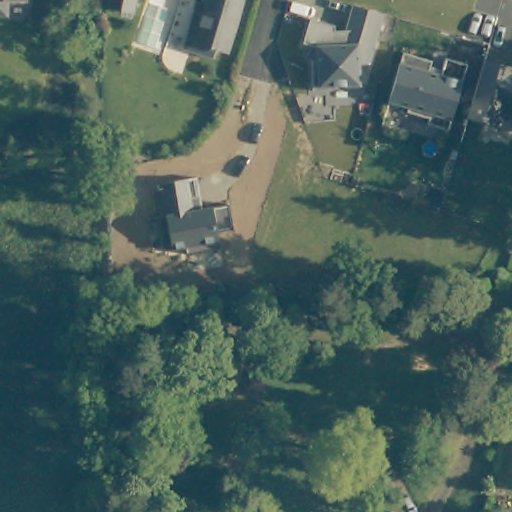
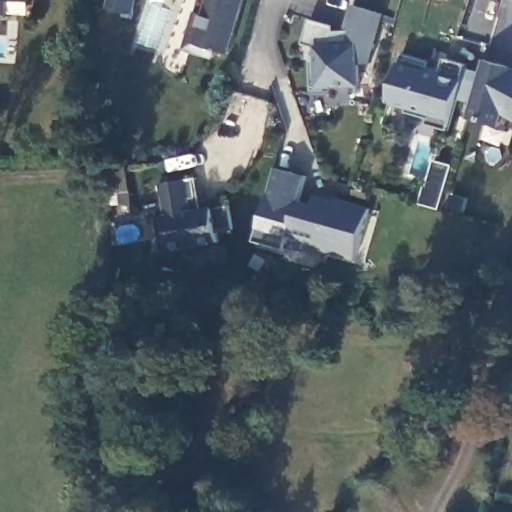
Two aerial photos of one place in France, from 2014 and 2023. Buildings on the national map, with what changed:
unchanged [(6,12),(0,12),(0,0),(6,0),(6,12)]
unchanged [(133,17),(107,10),(110,0),(137,0),(133,17)]
unchanged [(230,57),(220,54),(215,62),(185,52),(196,16),(206,20),(213,0),(247,0),(230,57)]
unchanged [(310,60),(314,60),(315,48),(302,45),(308,20),(335,26),(335,31),(345,31),(352,6),(384,15),(369,65),(362,65),(361,87),(313,88),(310,60)]
unchanged [(435,61),(432,71),(444,75),(449,58),(471,65),(452,130),(430,124),(432,119),(410,112),(411,107),(392,101),(406,53),(435,61)]
unchanged [(502,126),(471,117),(484,75),(488,60),(512,67),(512,115),(506,111),(502,126)]
new [(275,170),(306,179),(299,204),(312,207),(315,198),(335,204),(335,201),(368,210),(354,260),(320,251),(321,248),(288,239),(285,251),(254,243),(275,170)]
unchanged [(165,215),(171,215),(166,184),(196,179),(202,211),(229,207),(233,231),(218,234),(220,249),(188,254),(187,247),(171,250),(165,215)]

